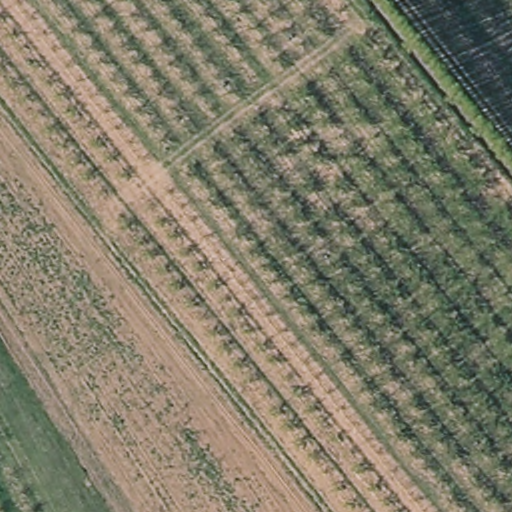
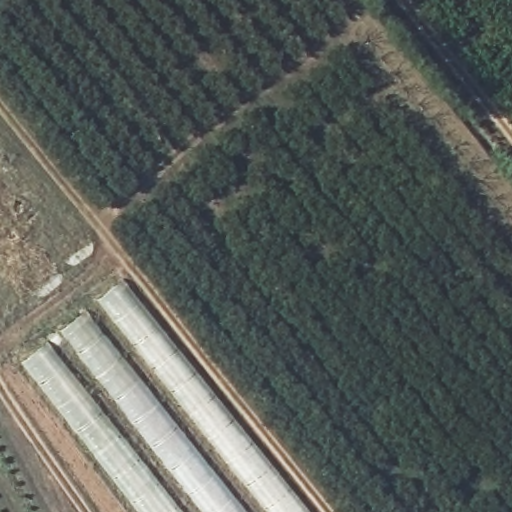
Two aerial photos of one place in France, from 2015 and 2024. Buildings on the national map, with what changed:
new [(98,301),(123,280),(309,512),(268,512),(98,301)]
new [(244,512),(207,512),(62,330),(84,312),(244,512)]
new [(180,512),(140,512),(21,365),(46,343),(180,512)]

